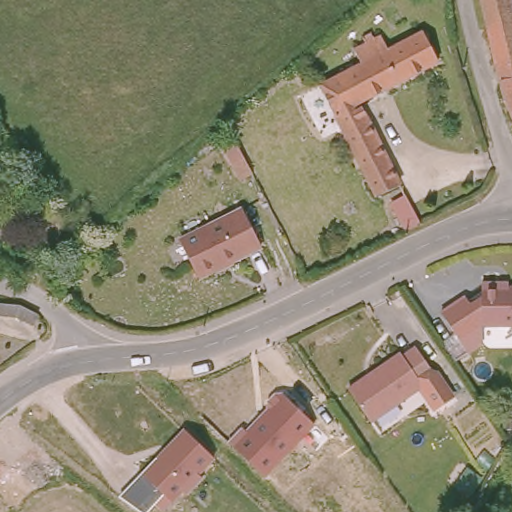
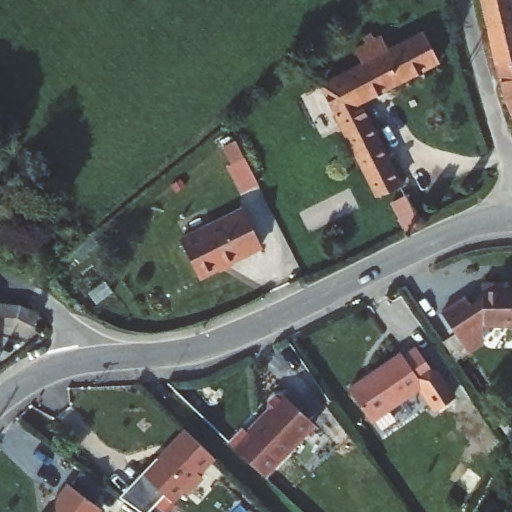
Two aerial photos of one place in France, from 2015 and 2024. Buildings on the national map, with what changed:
unchanged [(509,111),(504,98),(484,24),(479,1),(479,0),(508,0),(512,17),(512,119),(509,111)]
unchanged [(425,33),(441,61),(362,104),(368,116),(402,186),(380,197),(367,172),(338,113),(337,111),(328,93),(322,96),(318,88),(344,74),(361,65),(364,64),(357,50),(369,44),(365,37),(374,33),(378,40),(383,36),(390,50),(425,33)]
unchanged [(237,137),(239,143),(245,153),(233,160),(225,144),(237,137)]
unchanged [(408,231),(394,202),(406,195),(421,224),(408,231)]
unchanged [(247,209),(266,245),(204,278),(185,242),(247,209)]
unchanged [(484,295),(484,283),(504,284),(512,284),(512,326),(483,326),(484,295)]
unchanged [(463,340),(444,313),(467,296),(472,303),(484,295),(483,326),(463,340)]
unchanged [(13,306),(37,316),(32,327),(13,319),(0,316),(0,305),(13,306)]
unchanged [(423,385),(370,420),(348,388),(401,353),(404,357),(417,348),(433,374),(439,371),(455,396),(434,412),(417,389),(423,385)]
unchanged [(227,442),(242,426),(248,431),(268,406),(264,402),(277,390),(315,425),(265,479),(227,442)]
unchanged [(214,459),(199,477),(202,480),(186,497),(181,492),(161,512),(160,512),(154,506),(148,512),(140,512),(118,496),(184,429),(214,459)]
new [(100,512),(50,512),(70,486),(102,510),(100,512)]

